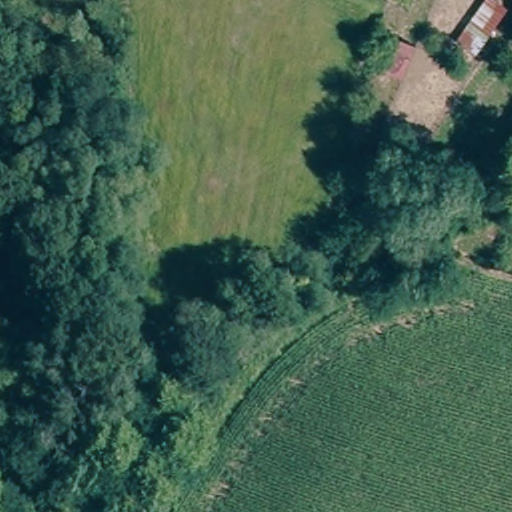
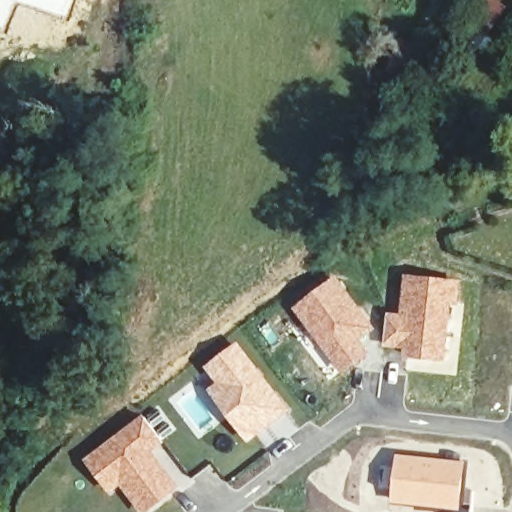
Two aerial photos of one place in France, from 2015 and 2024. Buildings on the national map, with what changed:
new [(489,1),(505,11),(477,54),(462,44),(489,1)]
new [(386,311),(398,313),(403,273),(463,280),(460,306),(454,306),(447,363),(401,359),(401,350),(382,348),(386,311)]
new [(335,274),(376,328),(361,340),(371,354),(341,376),(291,308),(335,274)]
new [(237,340),(291,409),(247,443),(205,390),(214,382),(202,367),(237,340)]
new [(164,442),(153,452),(180,487),(148,512),(140,512),(119,487),(109,495),(82,460),(142,414),(164,442)]
new [(394,454),(464,460),(459,511),(387,502),(394,454)]

